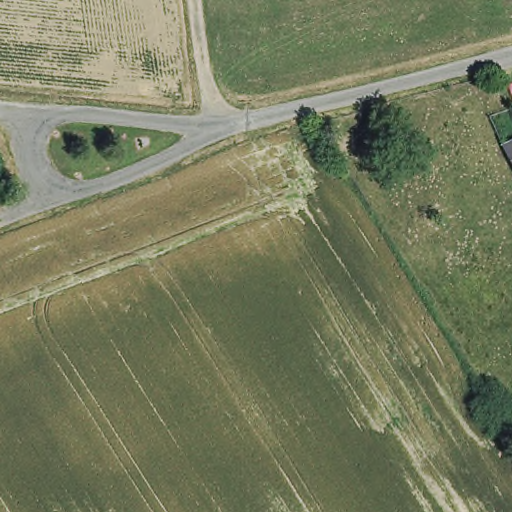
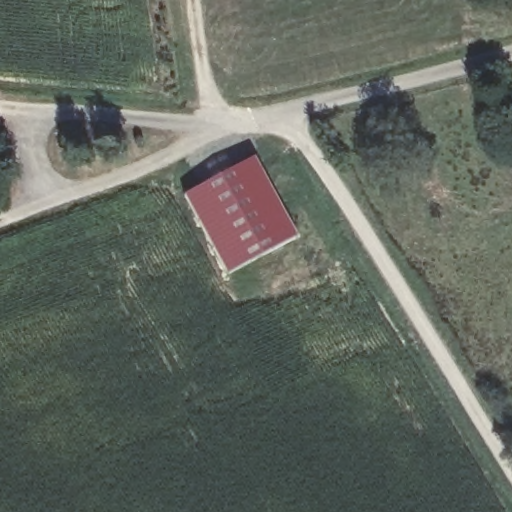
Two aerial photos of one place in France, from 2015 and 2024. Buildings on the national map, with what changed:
unchanged [(510,154),(512,153),(512,159),(510,154)]
new [(252,162),(295,240),(225,277),(183,196),(252,162)]

